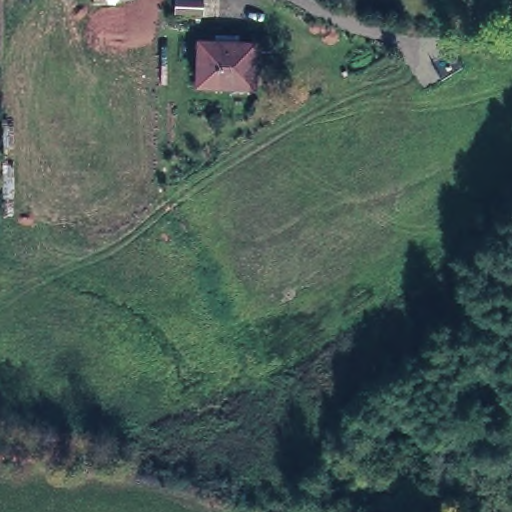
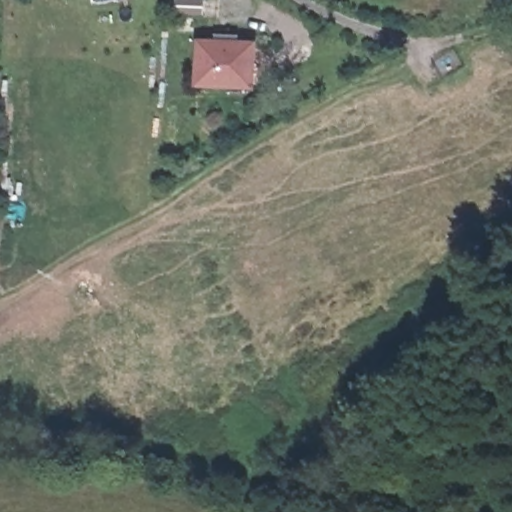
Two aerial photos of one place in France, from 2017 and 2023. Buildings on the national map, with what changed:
unchanged [(247,39),(247,81),(224,82),(195,83),(195,40),(213,40),(247,39)]

